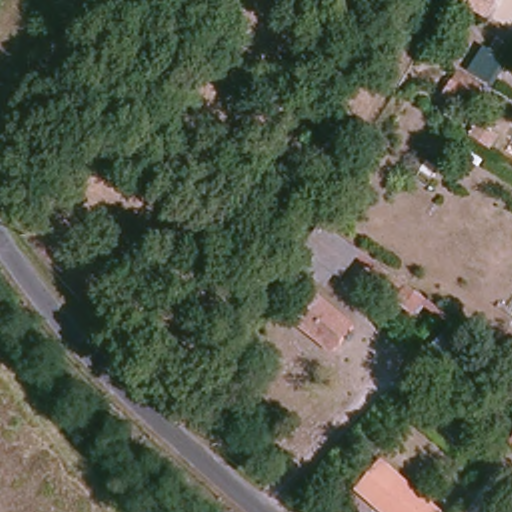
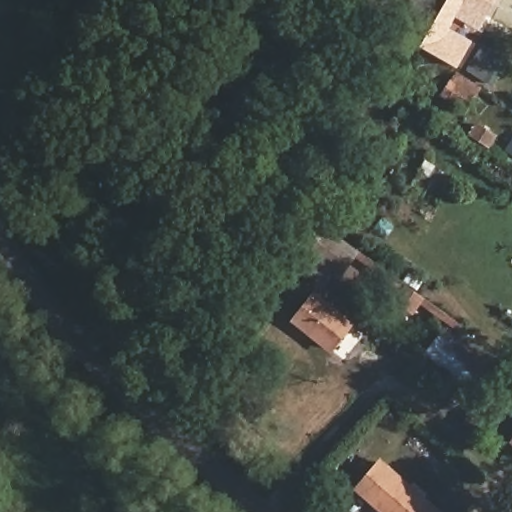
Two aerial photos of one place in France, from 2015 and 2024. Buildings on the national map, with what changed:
new [(490,12),(478,31),(455,18),(450,28),(472,41),(457,67),(420,47),(447,0),(466,0),(482,9),(490,12)]
unchanged [(466,0),(488,0),(482,9),(466,0)]
new [(483,45),(508,62),(492,86),(467,70),(483,45)]
unchanged [(442,91),(451,78),(457,69),(481,84),(475,93),(465,107),(442,91)]
unchanged [(471,136),(479,124),(496,135),(489,147),(471,136)]
unchanged [(323,217),(362,245),(344,270),(339,266),(328,280),(298,259),(307,244),(323,217)]
unchanged [(416,316),(395,301),(406,285),(426,300),(416,316)]
unchanged [(314,292),(351,320),(332,345),(296,317),(314,292)]
unchanged [(472,386),(428,355),(447,330),(488,362),(472,386)]
unchanged [(391,469),(421,494),(434,506),(441,512),(385,512),(367,497),(391,469)]

